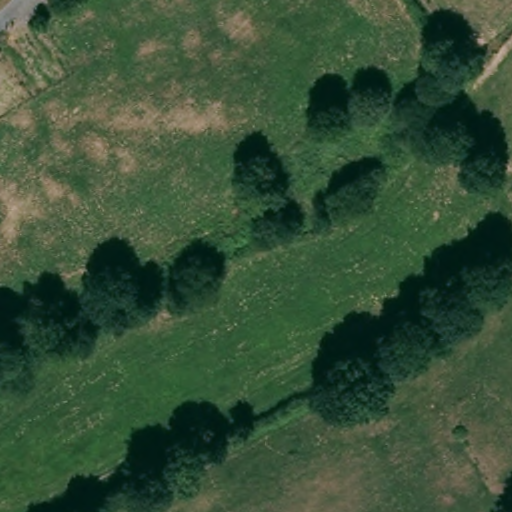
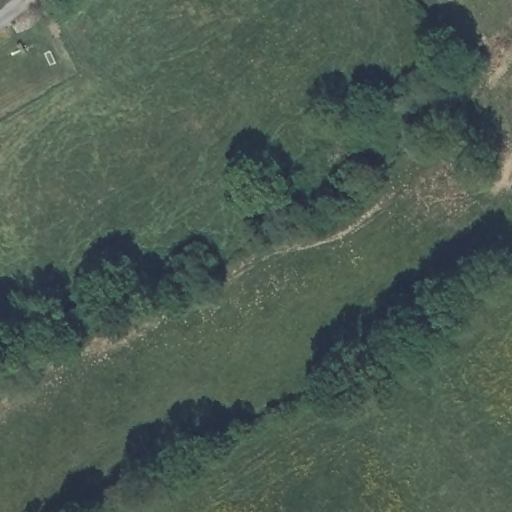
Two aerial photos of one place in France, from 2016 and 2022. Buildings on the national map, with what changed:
[]

